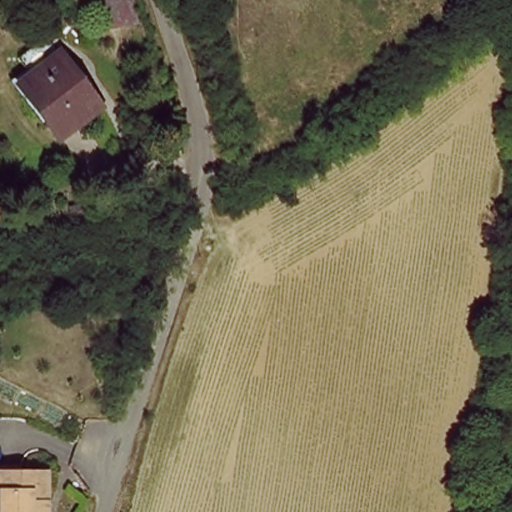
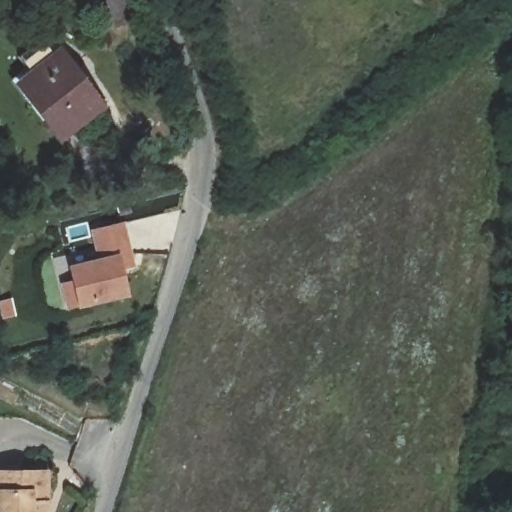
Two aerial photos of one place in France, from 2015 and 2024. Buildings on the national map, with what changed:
unchanged [(60,51),(95,111),(54,138),(18,74),(55,54),(60,51)]
new [(125,221),(135,268),(124,270),(130,295),(77,308),(66,310),(60,283),(72,279),(67,265),(95,258),(90,231),(125,221)]
unchanged [(51,512),(0,512),(0,468),(51,466),(51,512)]

